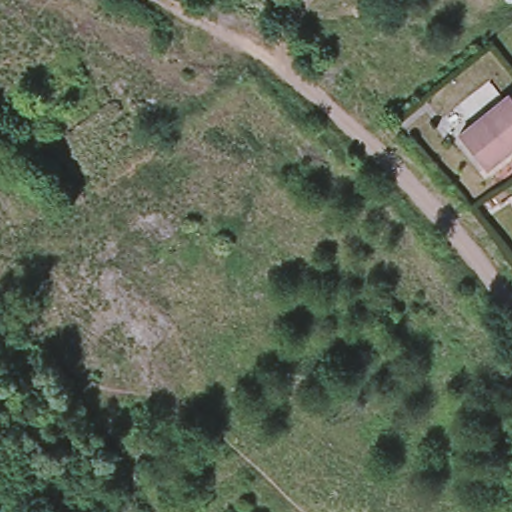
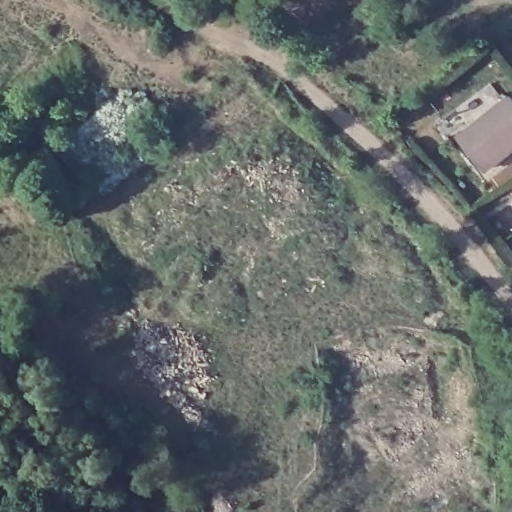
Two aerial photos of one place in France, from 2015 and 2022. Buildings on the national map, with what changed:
unchanged [(483,164),(457,132),(509,91),(512,95),(512,144),(509,146),(485,166),(483,164)]

